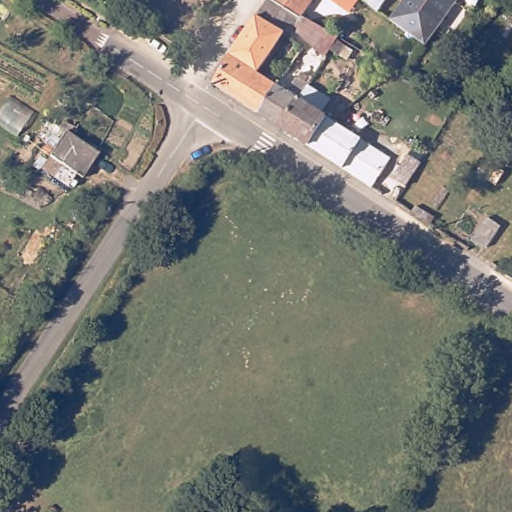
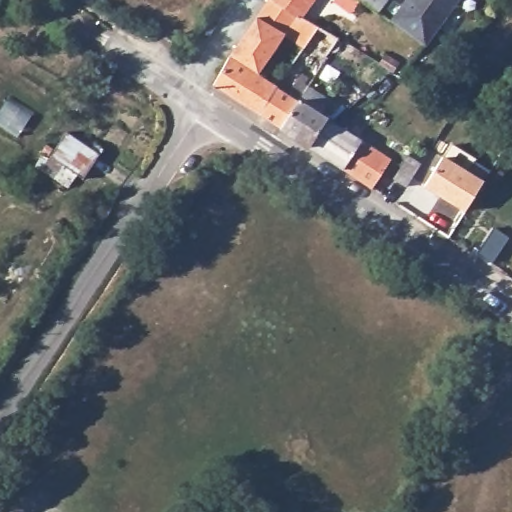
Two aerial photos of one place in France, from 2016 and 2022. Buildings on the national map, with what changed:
unchanged [(328,58),(301,31),(295,27),(289,36),(279,29),(261,17),(272,0),(279,0),(305,17),(307,19),(341,38),(328,58)]
unchanged [(279,0),(317,0),(305,17),(279,0)]
unchanged [(373,0),(387,0),(382,6),(373,0)]
unchanged [(460,0),(428,49),(393,24),(409,0),(460,0)]
unchanged [(217,84),(232,55),(258,16),(261,17),(279,29),(289,36),(262,73),(272,79),(276,75),(282,79),(260,113),(240,99),(217,84)]
unchanged [(282,128),(260,113),(282,79),(286,81),(290,84),(287,88),(293,92),(302,78),(311,84),(282,128)]
unchanged [(335,99),(327,113),(394,158),(375,188),(282,128),(311,84),(335,99)]
unchanged [(41,166),(65,130),(98,151),(82,175),(76,171),(66,184),(52,175),(41,166)]
unchanged [(392,177),(407,154),(419,162),(404,185),(392,177)]
new [(441,156),(465,171),(472,160),(489,170),(464,209),(423,184),(441,156)]

